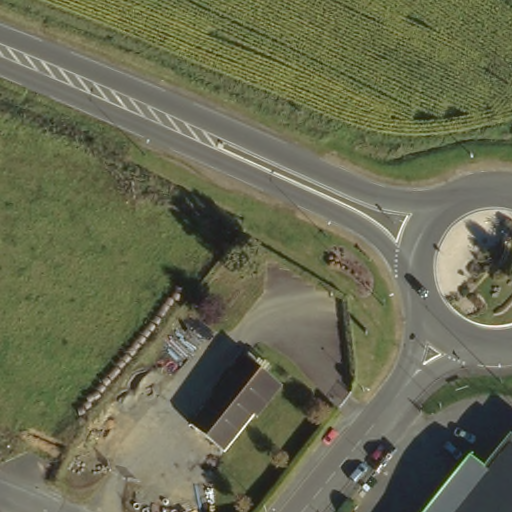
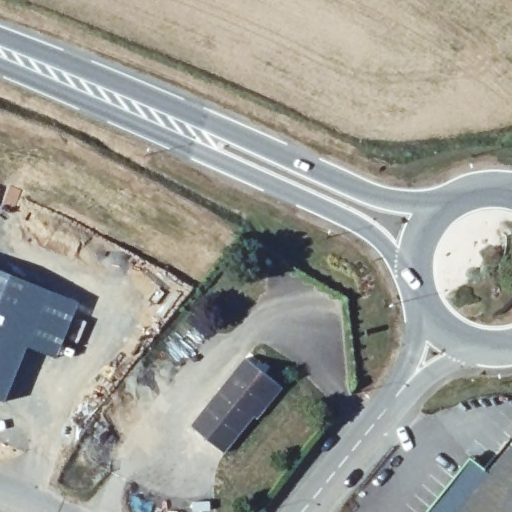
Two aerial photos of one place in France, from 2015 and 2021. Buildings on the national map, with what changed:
new [(55,360),(26,348),(3,405),(0,403),(0,271),(78,303),(55,360)]
unchanged [(253,352),(288,377),(236,449),(201,422),(253,352)]
unchanged [(490,470),(512,441),(512,512),(420,512),(464,454),(490,470)]

